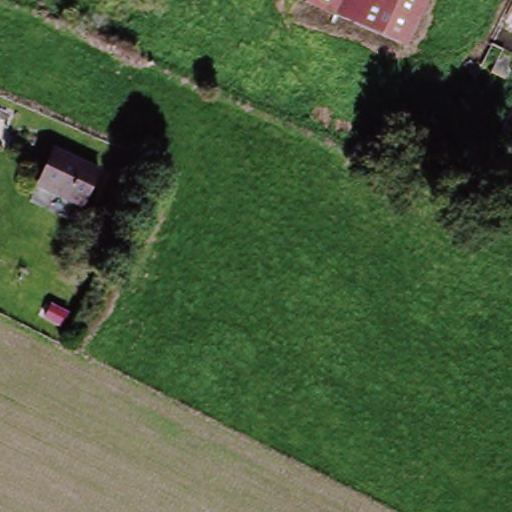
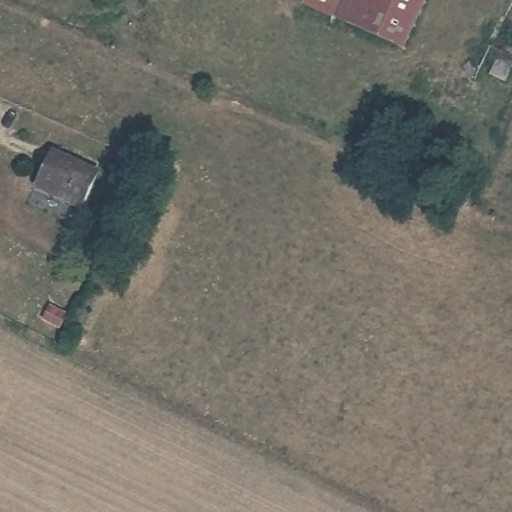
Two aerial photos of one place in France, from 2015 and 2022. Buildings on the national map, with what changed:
unchanged [(433,0),(410,49),(314,4),(316,0),(433,0)]
unchanged [(96,173),(80,207),(37,184),(53,150),(96,173)]

